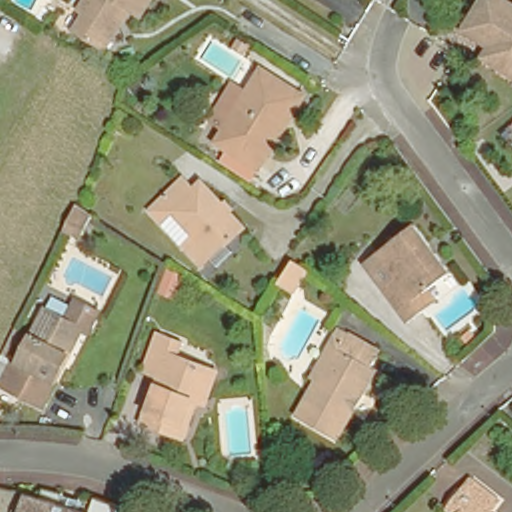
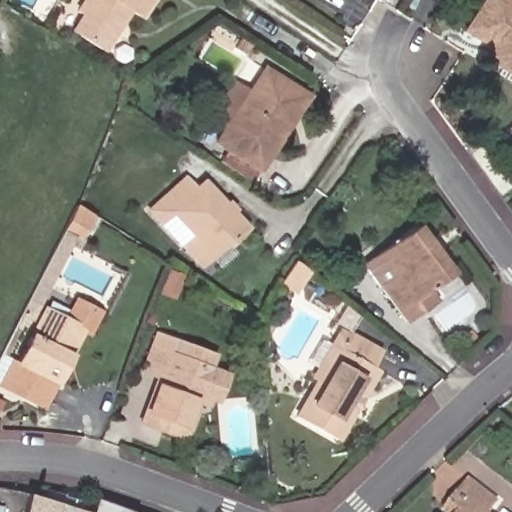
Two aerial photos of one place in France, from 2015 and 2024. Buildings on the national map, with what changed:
unchanged [(130,21),(117,13),(110,25),(113,27),(96,56),(66,39),(75,22),(68,17),(78,0),(143,0),(130,21)]
unchanged [(468,20),(481,0),(512,0),(512,65),(493,54),(485,48),(491,37),(468,20)]
unchanged [(286,102),(263,140),(267,142),(257,160),(215,131),(260,60),(302,87),(291,105),(286,102)]
unchanged [(213,257),(205,247),(193,256),(178,237),(174,240),(154,215),(158,212),(147,198),(164,184),(181,171),(194,185),(200,180),(236,224),(224,234),(231,243),(213,257)]
unchanged [(84,204),(74,225),(58,217),(68,197),(84,204)]
unchanged [(423,306),(406,318),(382,284),(364,259),(380,247),(417,220),(452,268),(430,285),(437,295),(423,306)]
unchanged [(300,264),(288,280),(277,272),(289,256),(300,264)]
unchanged [(18,402),(0,393),(0,381),(9,364),(11,365),(39,312),(60,323),(70,303),(92,315),(82,334),(76,332),(49,385),(35,411),(18,402)]
unchanged [(367,364),(373,367),(332,435),(294,413),(315,375),(310,372),(336,326),(346,332),(375,348),(367,364)]
unchanged [(139,414),(155,369),(141,364),(154,327),(175,336),(172,347),(206,360),(214,363),(200,397),(193,394),(179,430),(139,414)]
unchanged [(489,506),(497,512),(452,512),(453,510),(445,503),(460,485),(468,473),(496,496),(489,506)]
unchanged [(91,508),(90,512),(0,512),(0,482),(91,508)]
unchanged [(140,508),(139,512),(90,512),(91,508),(96,495),(140,508)]

